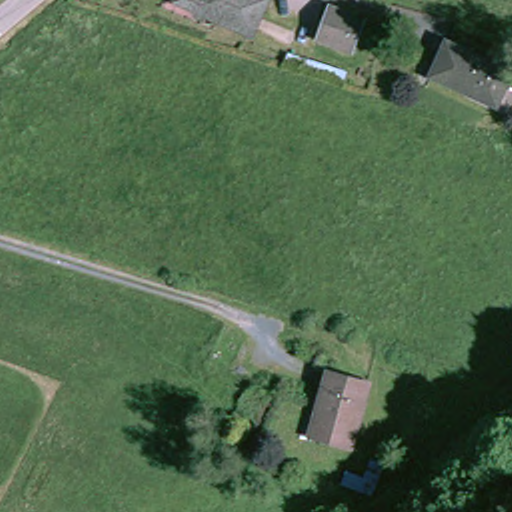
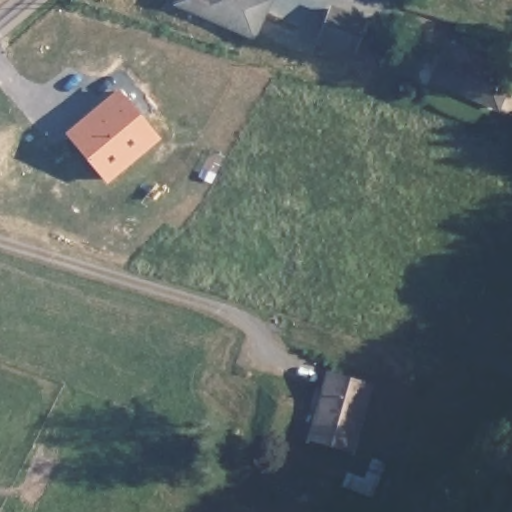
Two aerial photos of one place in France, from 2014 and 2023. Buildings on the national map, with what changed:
unchanged [(242,35),(212,22),(215,17),(190,5),(189,8),(171,0),(258,0),(242,35)]
unchanged [(366,26),(352,56),(320,44),(332,13),(366,26)]
unchanged [(432,80),(446,46),(512,72),(497,108),(432,80)]
new [(118,79),(162,133),(104,180),(61,128),(118,79)]
unchanged [(323,407),(332,373),(372,383),(354,446),(321,437),(315,435),(323,407)]
unchanged [(378,456),(370,485),(340,477),(342,466),(359,471),(364,452),(378,456)]

